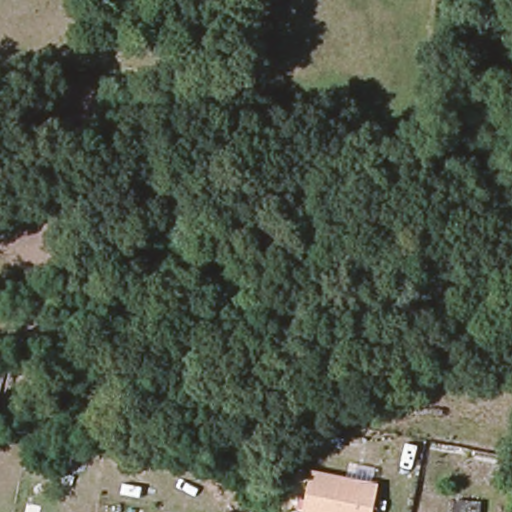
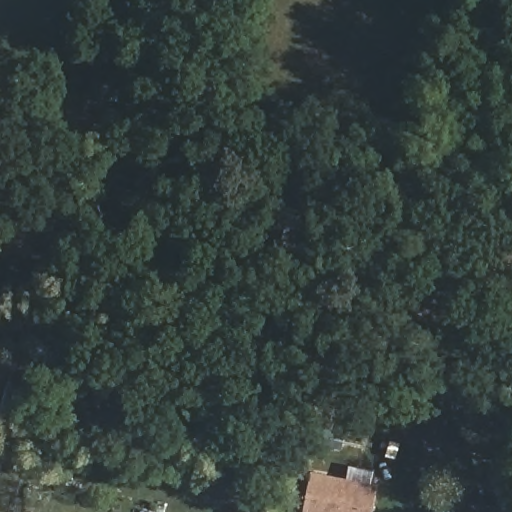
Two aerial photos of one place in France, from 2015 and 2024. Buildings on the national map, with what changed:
unchanged [(370,512),(301,512),(309,472),(375,485),(370,512)]

